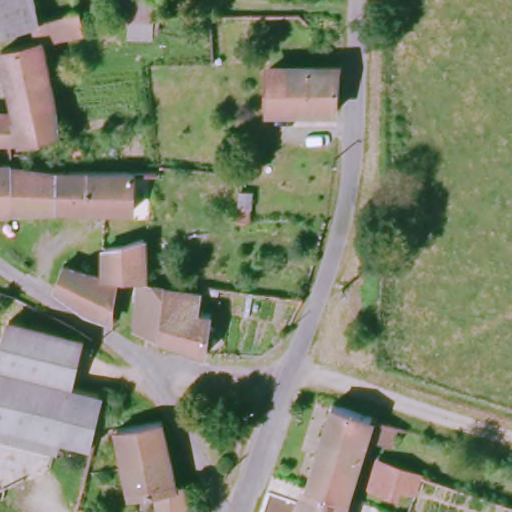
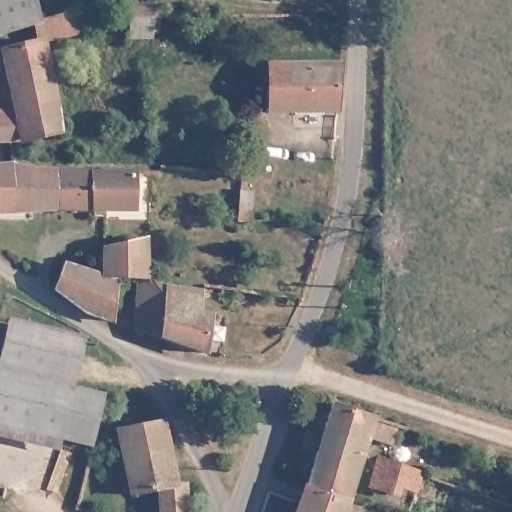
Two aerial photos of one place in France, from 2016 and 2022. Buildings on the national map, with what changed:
unchanged [(24,27),(0,35),(0,0),(31,0),(35,22),(23,25),(24,27)]
unchanged [(120,0),(120,19),(94,19),(94,0),(120,0)]
unchanged [(149,0),(149,18),(120,19),(120,0),(149,0)]
unchanged [(80,35),(42,45),(55,133),(12,142),(0,142),(0,109),(6,109),(0,65),(0,50),(27,44),(24,27),(23,25),(35,22),(50,18),(74,12),(76,20),(80,35)]
unchanged [(264,110),(264,65),(335,66),(334,109),(264,110)]
unchanged [(16,166),(50,170),(52,208),(0,206),(0,167),(16,166)]
unchanged [(67,172),(124,175),(123,209),(86,209),(52,208),(50,170),(67,172)]
unchanged [(142,239),(142,271),(142,281),(133,281),(113,281),(99,281),(99,272),(100,247),(123,242),(142,239)]
unchanged [(77,310),(52,290),(61,264),(99,272),(99,281),(113,281),(105,320),(77,310)]
unchanged [(197,352),(124,327),(133,281),(142,281),(198,292),(196,310),(207,312),(201,352),(197,352)]
unchanged [(32,433),(27,432),(0,425),(0,343),(4,321),(22,325),(72,335),(67,360),(71,360),(65,387),(102,396),(93,428),(89,447),(83,446),(32,433)]
unchanged [(301,483),(306,470),(327,398),(369,413),(359,452),(348,485),(344,497),(340,512),(290,512),(301,483)]
unchanged [(116,467),(108,427),(119,426),(159,421),(166,457),(116,467)]
unchanged [(415,470),(411,485),(392,478),(386,497),(357,487),(370,456),(415,470)]
unchanged [(152,491),(122,496),(116,467),(166,457),(171,485),(181,483),(183,512),(154,512),(152,491)]

